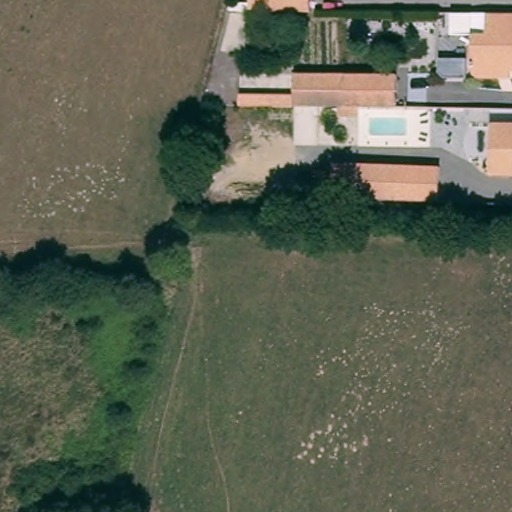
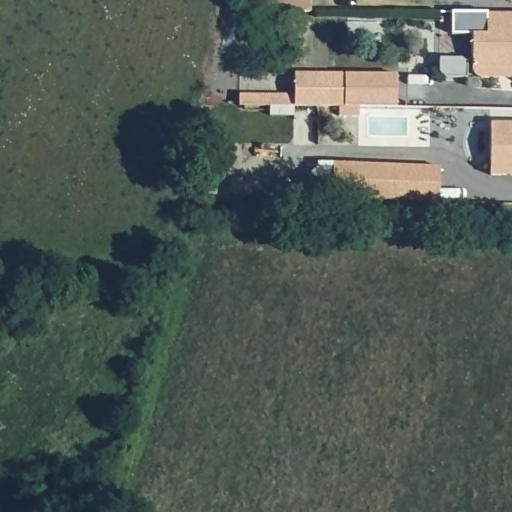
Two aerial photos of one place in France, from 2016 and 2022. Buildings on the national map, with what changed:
unchanged [(310,11),(250,11),(250,0),(310,0),(310,11)]
unchanged [(480,83),(476,82),(474,81),(473,79),(472,77),(472,74),(472,17),(512,17),(512,76),(510,76),(510,83),(498,83),(480,83)]
unchanged [(239,94),(294,94),(294,73),(397,74),(397,106),(294,106),(239,105),(239,94)]
unchanged [(490,128),(512,128),(512,180),(490,180),(490,128)]
unchanged [(349,193),(351,165),(379,159),(444,161),(443,197),(349,193)]

